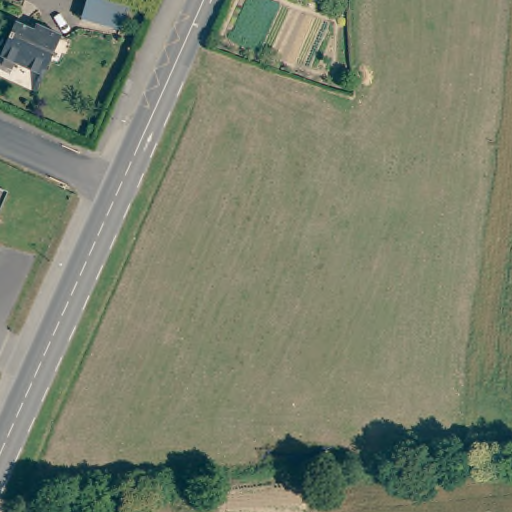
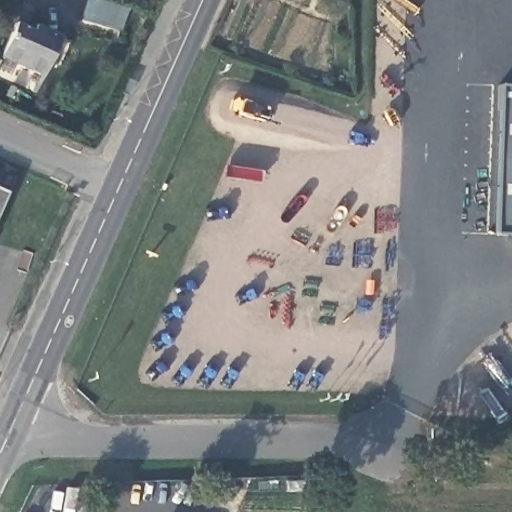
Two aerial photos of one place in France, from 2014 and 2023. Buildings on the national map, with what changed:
unchanged [(124,4),(128,6),(120,31),(79,18),(85,0),(109,0),(124,4)]
unchanged [(8,18),(25,24),(35,4),(64,18),(40,74),(0,58),(0,35),(8,18)]
new [(512,236),(495,235),(500,88),(512,88),(512,236)]
unchanged [(9,193),(0,213),(0,190),(9,193)]

